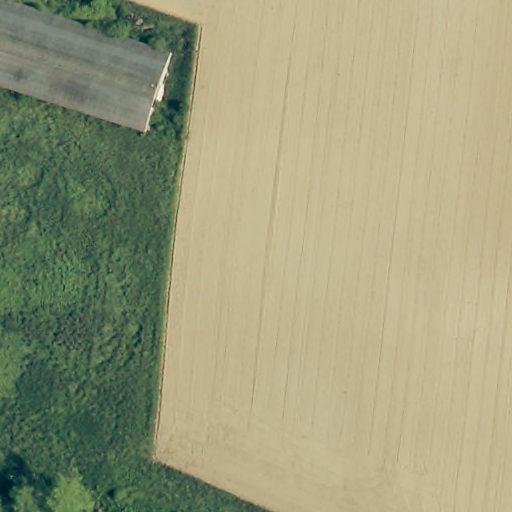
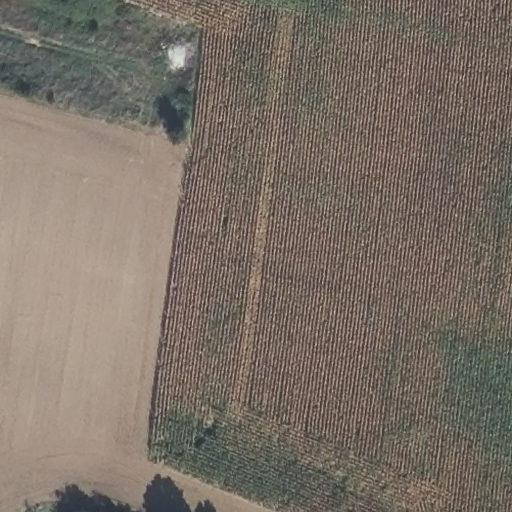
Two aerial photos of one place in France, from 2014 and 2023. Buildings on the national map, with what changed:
demolished [(0,85),(0,0),(13,0),(170,47),(145,129),(0,85)]

